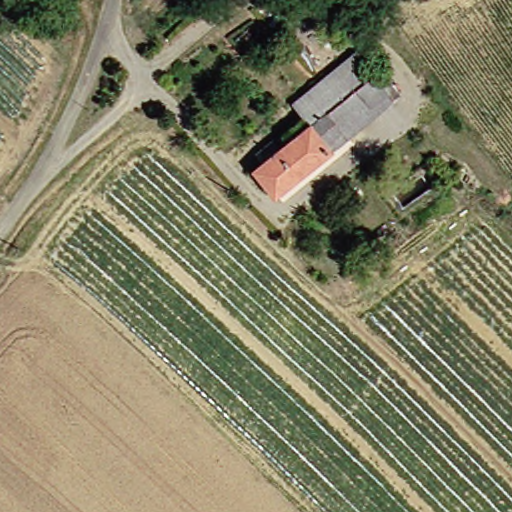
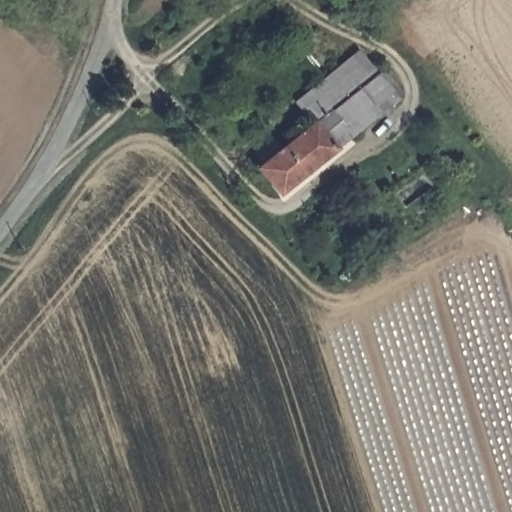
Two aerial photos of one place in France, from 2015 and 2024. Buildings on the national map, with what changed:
unchanged [(409,101),(283,192),(263,168),(318,126),(301,102),(365,56),(409,101)]

